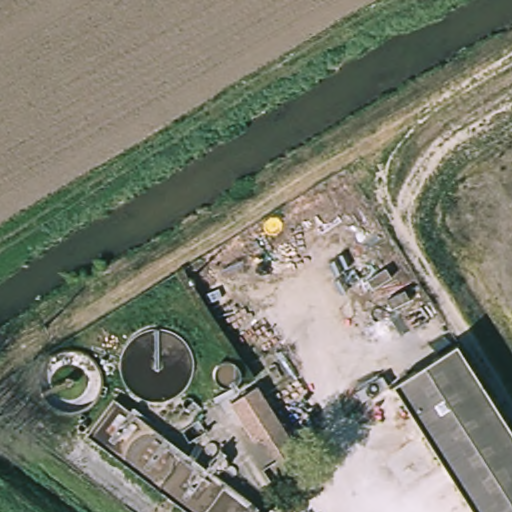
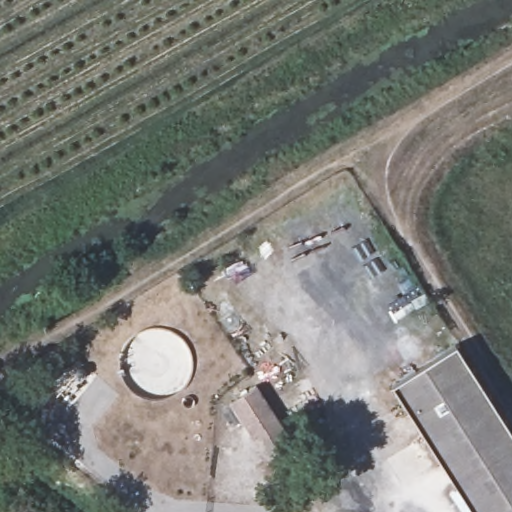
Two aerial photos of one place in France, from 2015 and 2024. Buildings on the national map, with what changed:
unchanged [(393,385),(457,344),(512,431),(512,512),(475,512),(393,385)]
unchanged [(268,468),(224,401),(253,382),(294,451),(268,468)]
unchanged [(206,433),(190,443),(182,430),(198,420),(206,433)]

